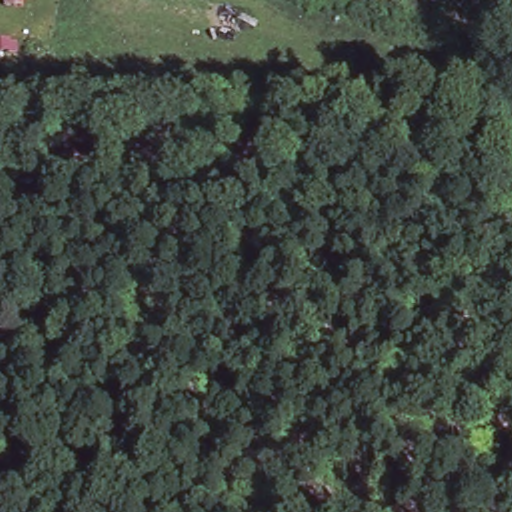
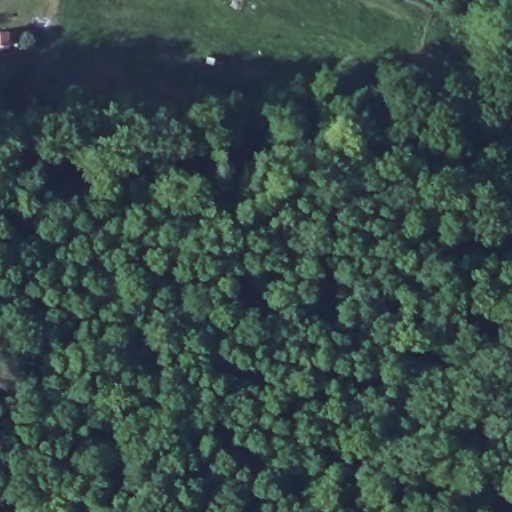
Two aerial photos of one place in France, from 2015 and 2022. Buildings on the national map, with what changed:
unchanged [(15,43),(0,44),(0,33),(15,32),(15,43)]

